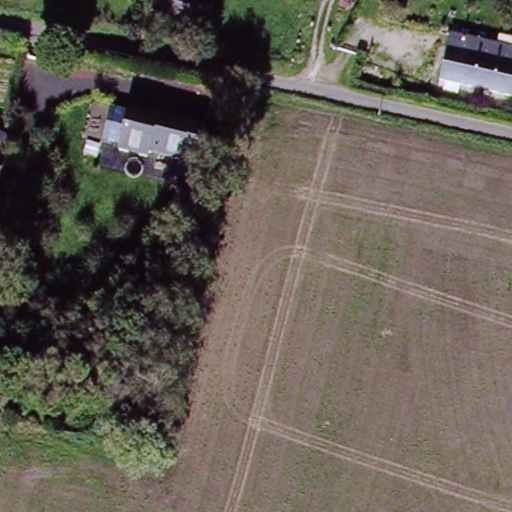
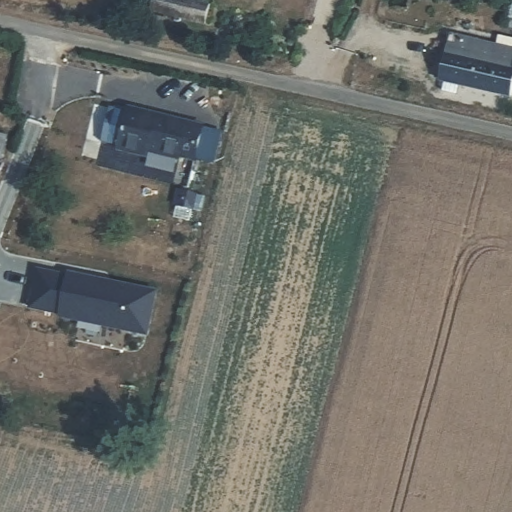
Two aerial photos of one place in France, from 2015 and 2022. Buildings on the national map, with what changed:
unchanged [(144,4),(145,0),(189,0),(186,14),(144,4)]
unchanged [(450,36),(496,46),(497,36),(512,40),(512,100),(461,89),(458,100),(436,94),(439,84),(445,59),(450,36)]
unchanged [(114,151),(124,104),(197,125),(187,166),(114,151)]
unchanged [(5,131),(0,148),(0,129),(5,131)]
unchanged [(2,161),(0,167),(0,161),(2,161)]
new [(69,276),(70,271),(158,291),(148,337),(59,319),(59,315),(30,309),(38,270),(69,276)]
new [(3,383),(0,392),(0,381),(3,383)]

